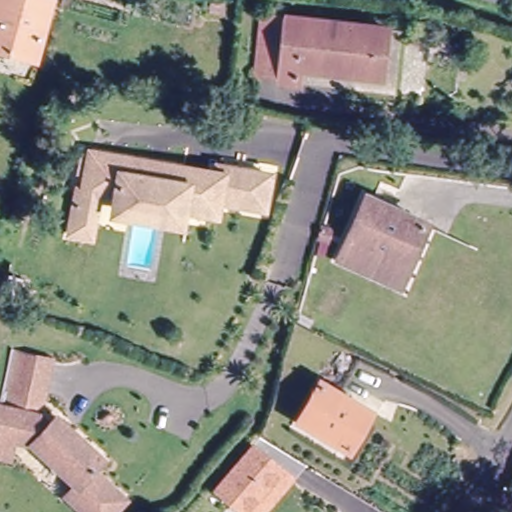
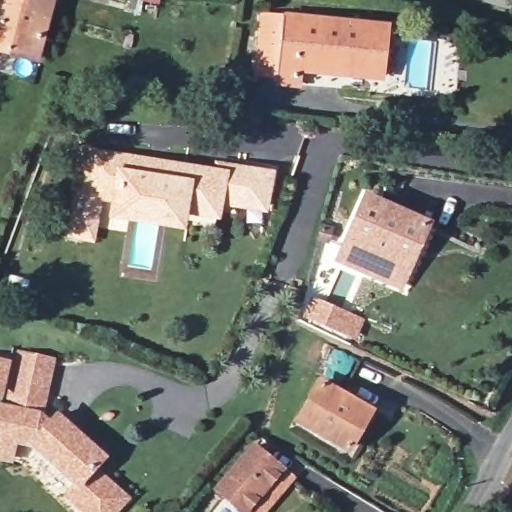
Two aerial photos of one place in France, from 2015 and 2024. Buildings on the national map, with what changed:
unchanged [(34,60),(0,50),(0,0),(51,0),(34,60)]
unchanged [(383,24),(379,75),(299,69),(298,82),(258,80),(261,12),(383,24)]
unchanged [(72,239),(78,197),(85,198),(91,155),(185,169),(182,188),(220,193),(224,169),(270,176),(264,209),(220,203),(219,218),(184,213),(184,217),(115,208),(116,202),(93,199),(88,241),(72,239)]
unchanged [(340,258),(369,197),(426,223),(407,266),(401,283),(361,267),(340,258)]
new [(312,295),(364,317),(354,339),(303,316),(312,295)]
unchanged [(0,424),(13,356),(54,365),(43,419),(55,429),(60,420),(107,461),(97,472),(130,502),(122,512),(84,512),(72,501),(82,489),(34,448),(17,445),(13,464),(0,461),(0,424)]
new [(3,396),(0,396),(0,357),(11,359),(3,396)]
unchanged [(318,381),(366,410),(345,444),(296,418),(318,381)]
unchanged [(258,451),(295,482),(274,506),(263,497),(250,512),(242,512),(221,494),(258,451)]

